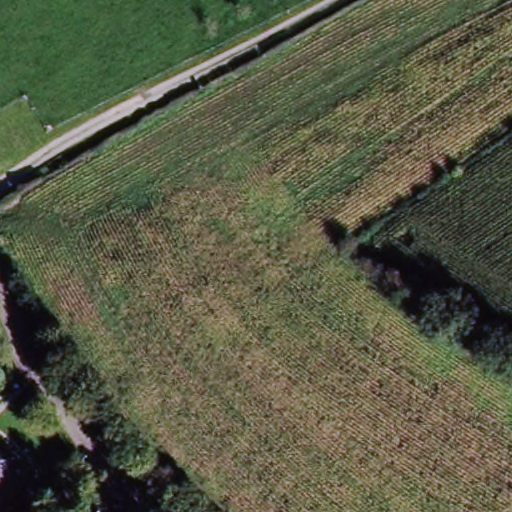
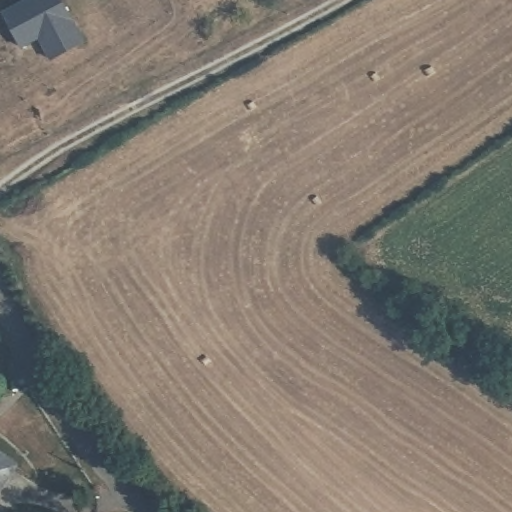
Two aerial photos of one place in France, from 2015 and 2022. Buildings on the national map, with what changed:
new [(35,0),(71,0),(90,42),(55,63),(41,45),(23,51),(4,17),(35,0)]
unchanged [(0,486),(0,463),(10,470),(0,486)]

